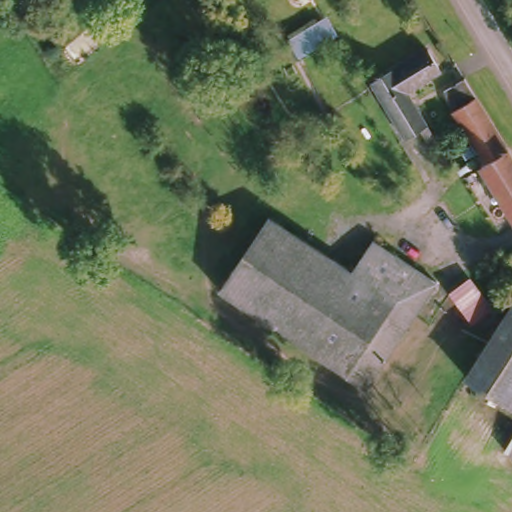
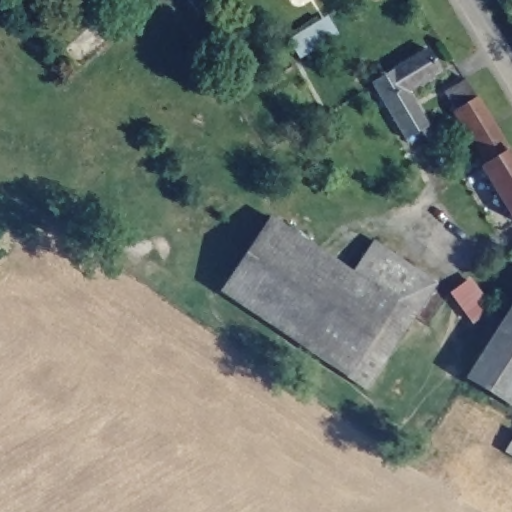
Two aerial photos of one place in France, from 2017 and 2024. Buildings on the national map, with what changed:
unchanged [(299,54),(289,35),(325,13),(336,30),(299,54)]
unchanged [(440,70),(406,90),(433,136),(427,140),(421,129),(404,139),(371,84),(371,83),(426,49),(440,70)]
unchanged [(464,74),(507,145),(486,158),(443,86),(464,74)]
unchanged [(486,158),(507,145),(512,153),(512,200),(492,167),(486,158)]
unchanged [(353,272),(396,300),(345,376),(219,292),(269,217),(353,272)]
unchanged [(396,300),(353,272),(374,241),(436,283),(366,389),(345,376),(396,300)]
unchanged [(468,280),(489,308),(471,321),(451,294),(468,280)]
unchanged [(466,376),(512,303),(512,405),(466,376)]
unchanged [(505,451),(512,439),(512,455),(505,451)]

